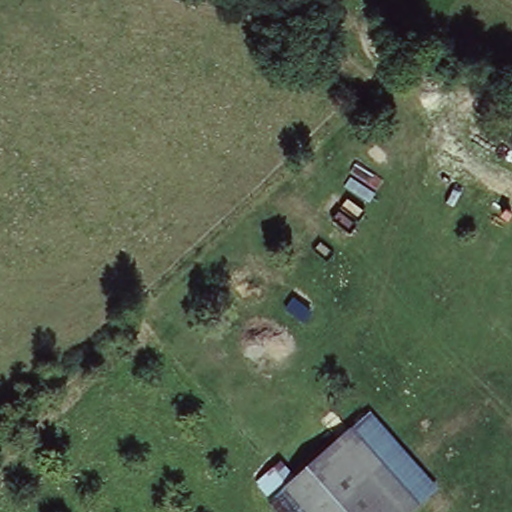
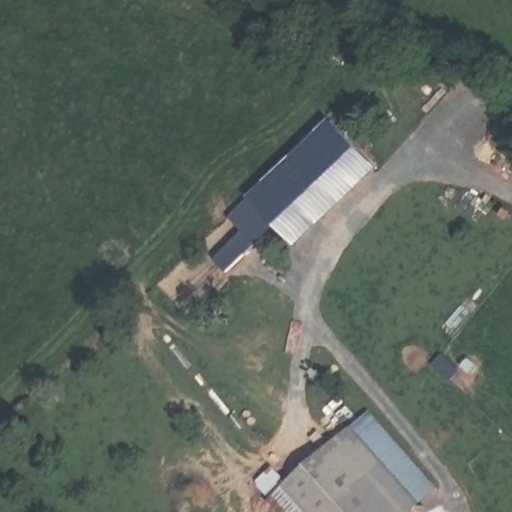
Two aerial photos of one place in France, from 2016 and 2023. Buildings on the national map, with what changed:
new [(331,113),(377,163),(295,238),(276,220),(256,240),(229,213),(331,113)]
unchanged [(365,411),(432,488),(411,507),(344,431),(365,411)]
unchanged [(344,431),(411,507),(406,512),(302,512),(280,490),(344,431)]
new [(280,460),(294,475),(269,497),(256,482),(280,460)]

